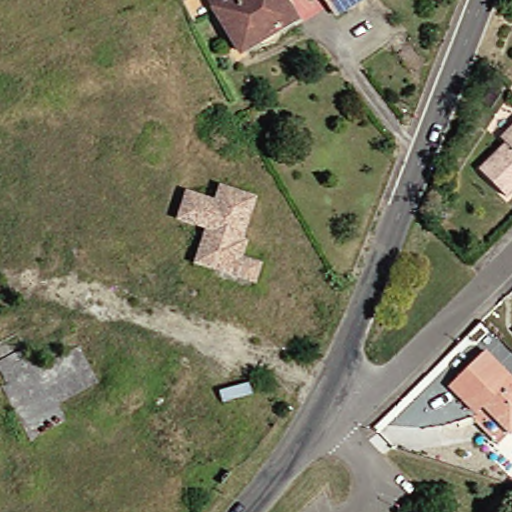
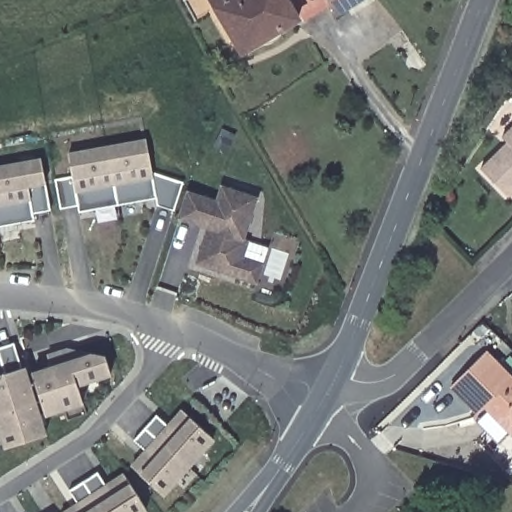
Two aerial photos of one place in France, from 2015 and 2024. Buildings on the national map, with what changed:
unchanged [(247,49),(216,0),(292,0),(303,16),(247,49)]
unchanged [(323,0),(365,0),(335,19),(323,0)]
unchanged [(507,199),(481,170),(509,144),(504,139),(512,130),(512,194),(507,199)]
new [(175,212),(156,206),(155,199),(79,213),(78,208),(60,210),(55,180),(73,177),(68,152),(145,139),(151,173),(184,183),(175,212)]
new [(50,212),(33,214),(34,221),(0,227),(0,165),(41,158),(45,185),(50,212)]
unchanged [(207,229),(178,219),(187,191),(217,199),(221,184),(257,195),(245,237),(251,239),(245,259),(264,264),(259,284),(196,264),(207,229)]
new [(21,369),(26,367),(28,372),(50,366),(46,354),(65,348),(90,352),(105,355),(111,377),(78,386),(83,405),(41,417),(47,435),(5,448),(0,433),(0,347),(14,344),(21,369)]
unchanged [(473,414),(474,413),(479,408),(452,382),(487,348),(512,373),(512,429),(501,440),(473,414)]
new [(190,417),(215,440),(164,497),(141,473),(131,466),(144,452),(134,443),(156,416),(167,425),(181,409),(190,417)]
new [(130,484),(148,512),(63,512),(78,503),(70,491),(98,474),(105,484),(122,473),(130,484)]

